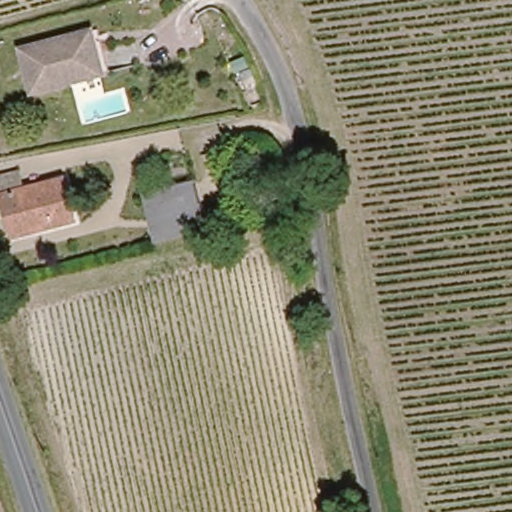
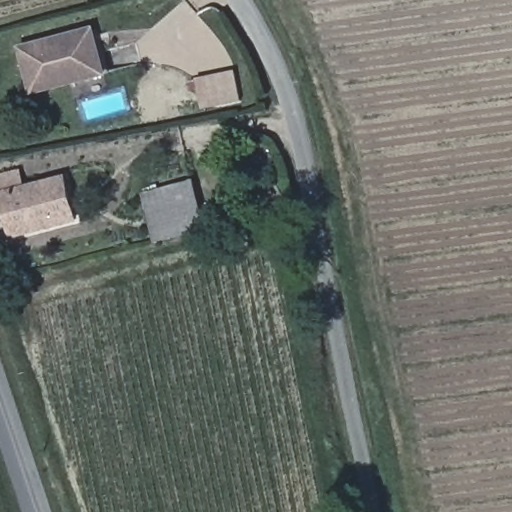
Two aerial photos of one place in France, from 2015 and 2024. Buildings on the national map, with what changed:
unchanged [(91,31),(102,72),(33,91),(22,50),(91,31)]
new [(236,71),(242,102),(201,109),(196,78),(236,71)]
unchanged [(5,192),(57,178),(68,218),(16,233),(5,192)]
unchanged [(185,182),(197,231),(152,242),(140,194),(185,182)]

